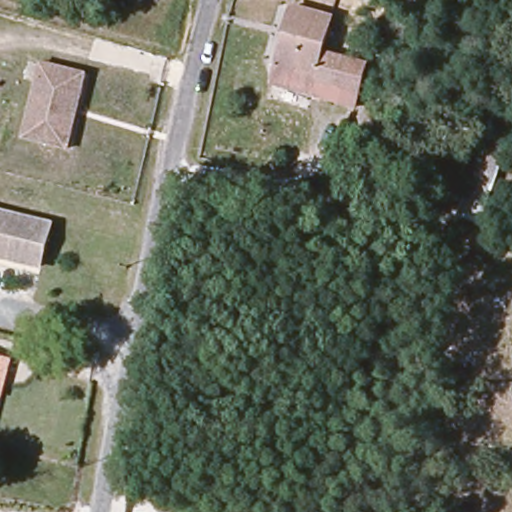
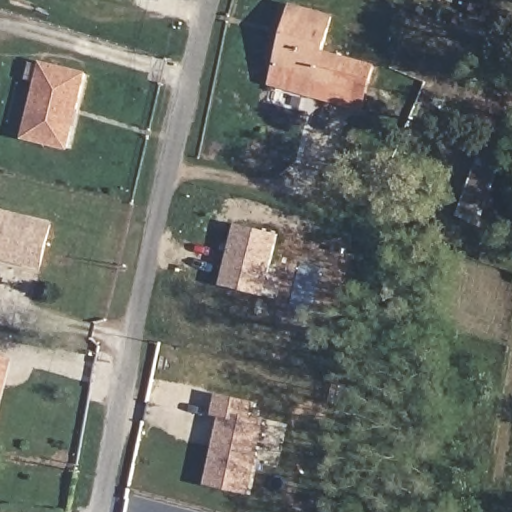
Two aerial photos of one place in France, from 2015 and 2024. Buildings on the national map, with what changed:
unchanged [(335,19),(325,55),(366,65),(359,95),(314,81),(310,97),(271,87),(295,9),(335,19)]
unchanged [(41,62),(86,75),(69,151),(22,141),(41,62)]
unchanged [(486,137),(507,144),(479,226),(456,216),(486,137)]
unchanged [(0,213),(49,224),(39,266),(0,257),(0,213)]
new [(263,297),(220,286),(235,223),(280,234),(263,297)]
unchanged [(0,390),(0,362),(6,363),(0,390)]
new [(212,415),(217,393),(255,402),(252,417),(267,420),(249,494),(205,484),(220,417),(212,415)]

